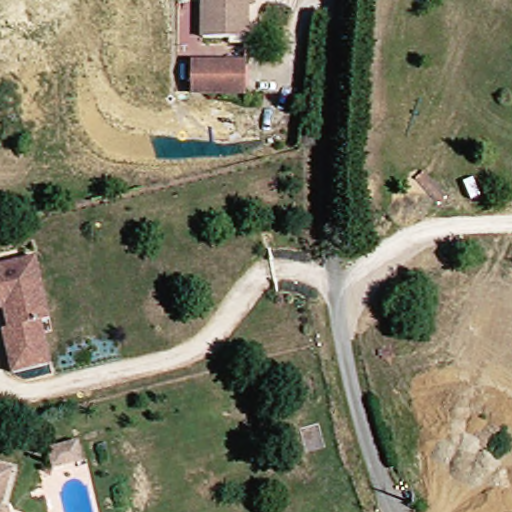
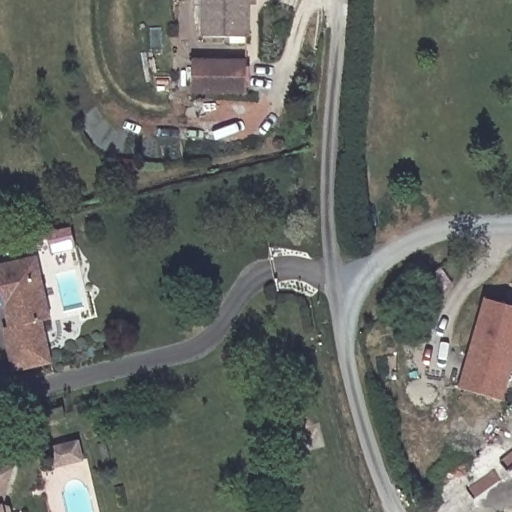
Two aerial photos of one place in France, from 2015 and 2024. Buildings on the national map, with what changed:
unchanged [(247,39),(209,39),(208,0),(257,0),(256,13),(247,13),(247,39)]
unchanged [(251,95),(196,94),(196,59),(252,60),(251,95)]
unchanged [(5,332),(1,312),(0,313),(0,269),(15,266),(35,262),(40,285),(48,325),(39,327),(47,370),(8,377),(0,336),(0,333),(5,332)]
new [(460,388),(486,300),(512,307),(512,364),(502,400),(460,388)]
unchanged [(48,448),(57,445),(77,442),(82,462),(62,466),(52,468),(48,448)]
demolished [(85,462),(89,482),(69,486),(65,466),(85,462)]
unchanged [(17,475),(3,511),(8,512),(0,512),(0,468),(17,475)]

